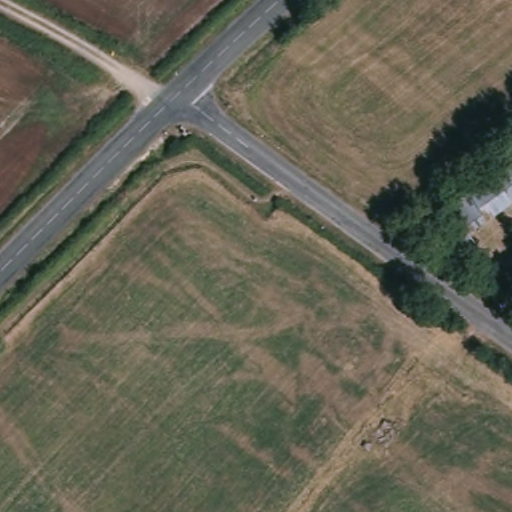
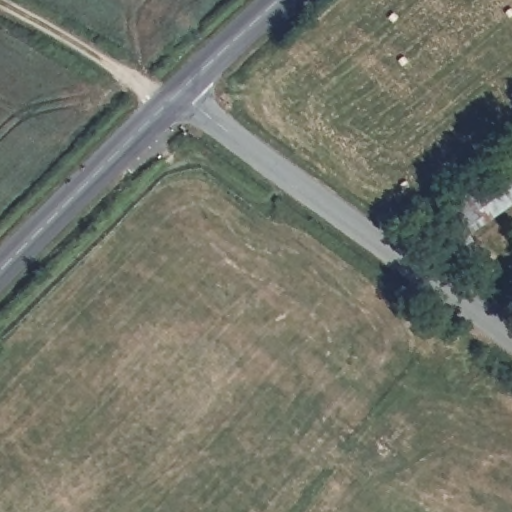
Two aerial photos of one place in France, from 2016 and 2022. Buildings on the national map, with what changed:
unchanged [(434,220),(498,172),(512,193),(512,206),(472,235),(481,249),(462,259),(434,220)]

